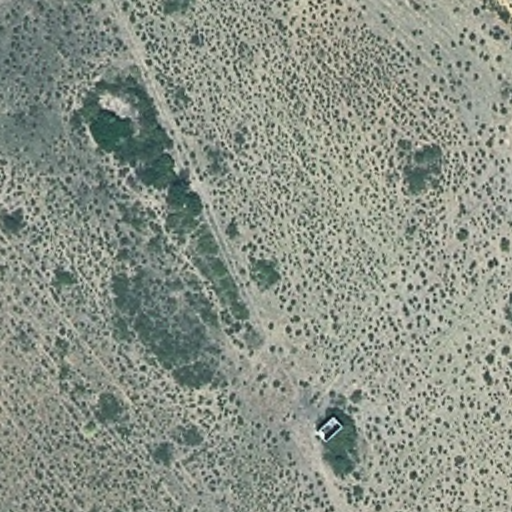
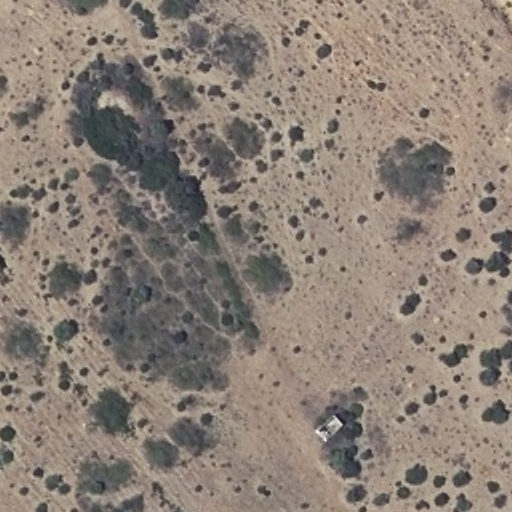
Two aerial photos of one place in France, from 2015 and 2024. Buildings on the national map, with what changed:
unchanged [(136,109),(144,129),(125,140),(115,121),(136,109)]

